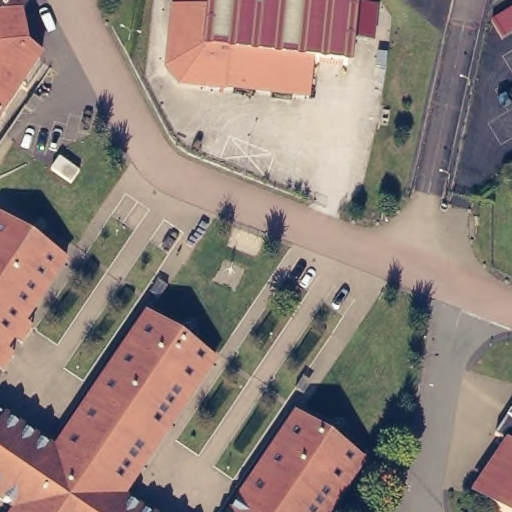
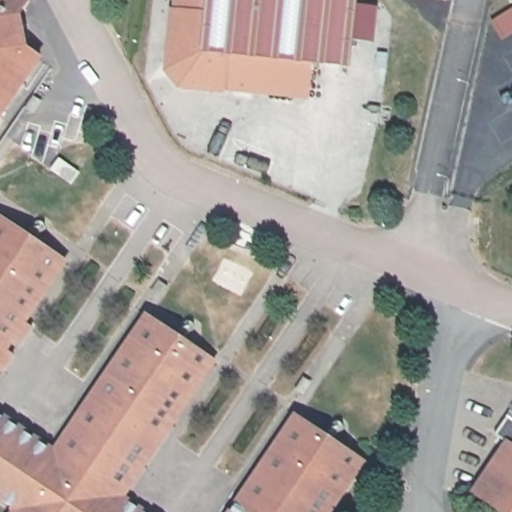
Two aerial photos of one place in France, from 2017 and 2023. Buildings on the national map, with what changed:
unchanged [(27,0),(20,10),(26,42),(41,52),(20,82),(0,70),(0,0),(27,0)]
unchanged [(377,7),(375,42),(355,41),(352,68),(317,66),(310,100),(177,89),(161,73),(167,7),(172,8),(172,0),(359,0),(359,5),(377,7)]
unchanged [(487,22),(512,7),(512,35),(500,42),(487,22)]
unchanged [(20,82),(0,113),(0,70),(20,82)]
unchanged [(177,90),(188,111),(175,118),(164,97),(177,90)]
unchanged [(65,256),(0,352),(0,213),(65,256)]
unchanged [(55,448),(147,312),(213,357),(122,492),(150,512),(12,512),(17,506),(0,495),(0,411),(55,448)]
unchanged [(296,412),(362,457),(325,512),(229,512),(296,412)]
unchanged [(512,417),(512,443),(500,435),(512,417)]
unchanged [(512,444),(512,512),(509,512),(480,492),(512,444)]

